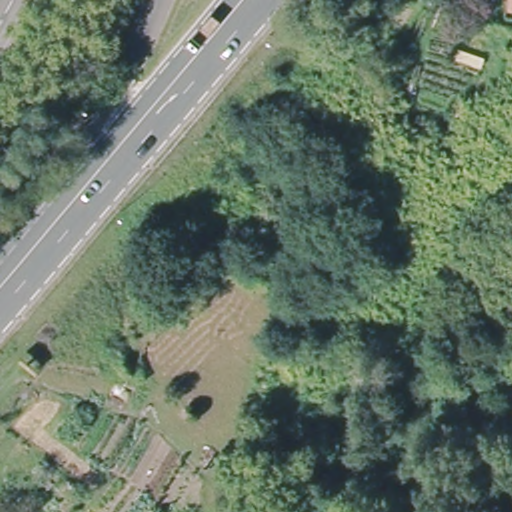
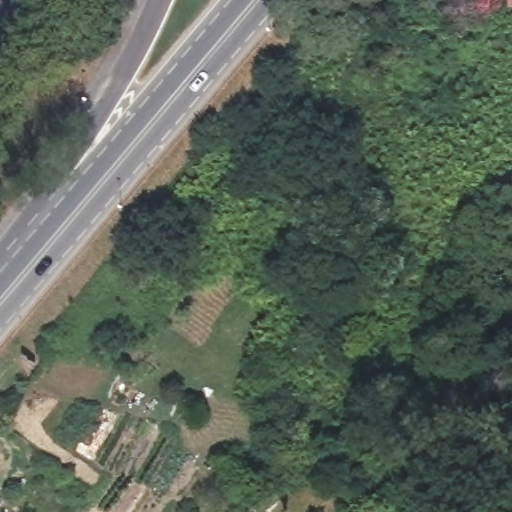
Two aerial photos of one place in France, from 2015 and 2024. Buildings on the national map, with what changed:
unchanged [(509,0),(512,0),(512,3),(509,3),(509,0)]

